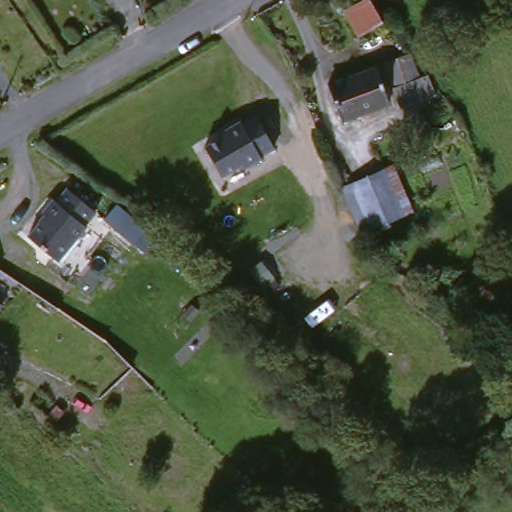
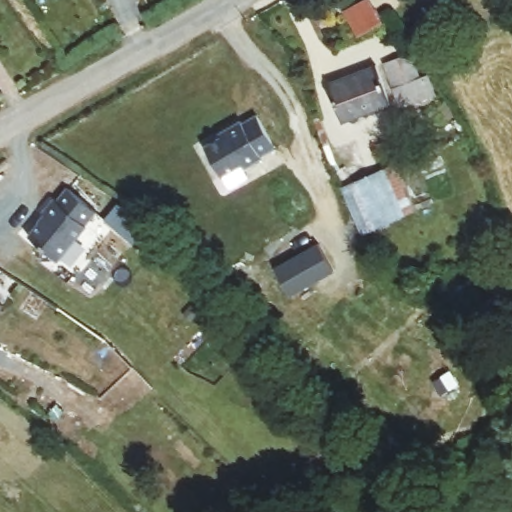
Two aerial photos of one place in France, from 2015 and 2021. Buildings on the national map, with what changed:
unchanged [(374,0),(386,20),(359,36),(346,7),(358,0),(374,0)]
unchanged [(420,50),(434,92),(403,101),(388,62),(420,50)]
unchanged [(370,58),(388,95),(340,117),(319,81),(370,58)]
unchanged [(219,135),(216,127),(239,118),(240,121),(262,112),(274,141),(254,149),(258,154),(236,163),(235,160),(218,166),(206,141),(219,135)]
unchanged [(348,185),(396,167),(413,212),(364,230),(348,185)]
unchanged [(26,230),(46,212),(43,207),(58,194),(62,196),(72,188),(101,217),(54,258),(26,230)]
unchanged [(157,242),(143,257),(114,232),(128,217),(157,242)]
new [(288,294),(274,267),(319,245),(333,272),(288,294)]

